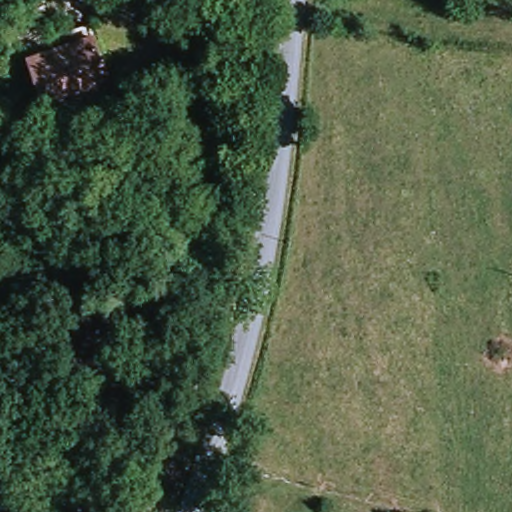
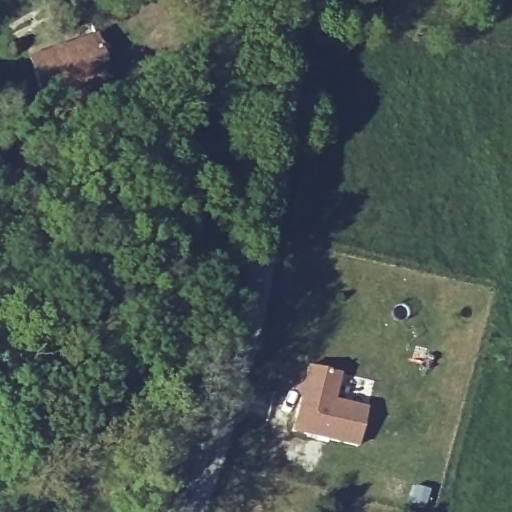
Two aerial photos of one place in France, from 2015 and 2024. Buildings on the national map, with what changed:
unchanged [(44,95),(29,59),(91,35),(106,71),(44,95)]
new [(294,389),(303,384),(307,367),(325,371),(336,374),(333,384),(330,399),(362,407),(354,444),(292,431),(299,398),(294,389)]

